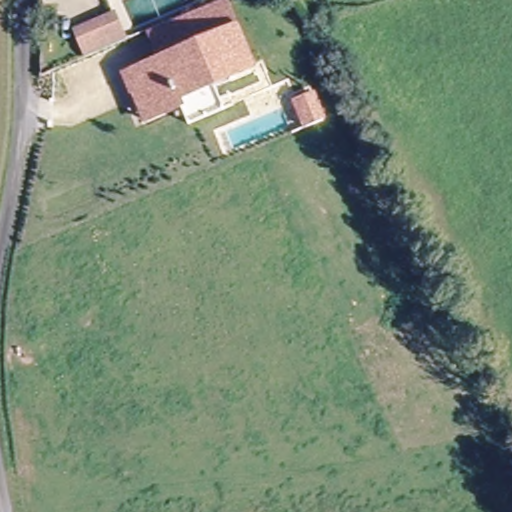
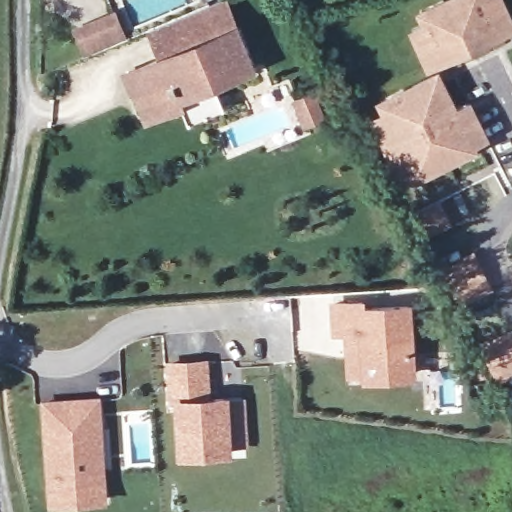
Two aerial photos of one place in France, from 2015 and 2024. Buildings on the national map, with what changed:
unchanged [(145,32),(221,0),(230,0),(241,26),(141,67),(148,85),(169,77),(183,108),(145,123),(133,93),(129,95),(120,71),(155,57),(145,32)]
new [(422,24),(416,11),(439,0),(506,0),(512,15),(512,33),(426,72),(408,30),(422,24)]
unchanged [(124,39),(79,58),(68,30),(113,11),(124,39)]
unchanged [(241,26),(258,68),(215,89),(224,111),(190,125),(183,108),(169,77),(148,85),(141,67),(241,26)]
new [(440,69),(459,106),(472,99),(491,138),(477,145),(480,149),(416,182),(413,177),(399,183),(368,120),(381,113),(375,101),(440,69)]
unchanged [(306,124),(302,125),(291,98),(308,91),(320,118),(306,124)]
new [(458,306),(439,268),(475,252),(494,290),(458,306)]
new [(349,381),(345,336),(332,337),(330,301),(365,299),(366,305),(412,302),(417,377),(349,381)]
new [(512,329),(512,378),(497,385),(478,345),(512,329)]
new [(209,359),(212,395),(245,394),(247,445),(235,445),(237,458),(179,460),(176,408),(170,408),(167,361),(209,359)]
new [(103,393),(108,503),(49,507),(40,398),(103,393)]

